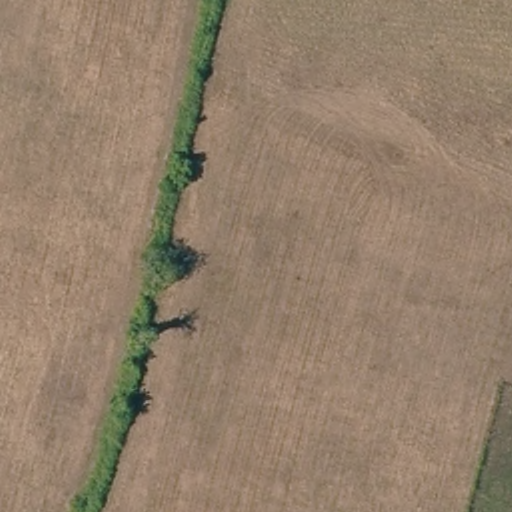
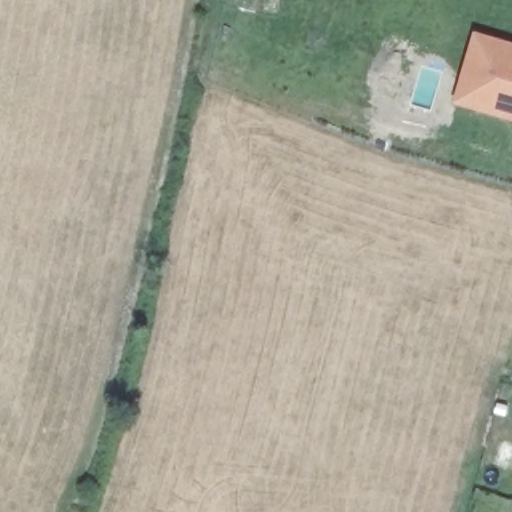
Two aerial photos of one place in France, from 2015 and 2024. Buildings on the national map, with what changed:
new [(512,42),(512,121),(453,104),(475,31),(512,42)]

